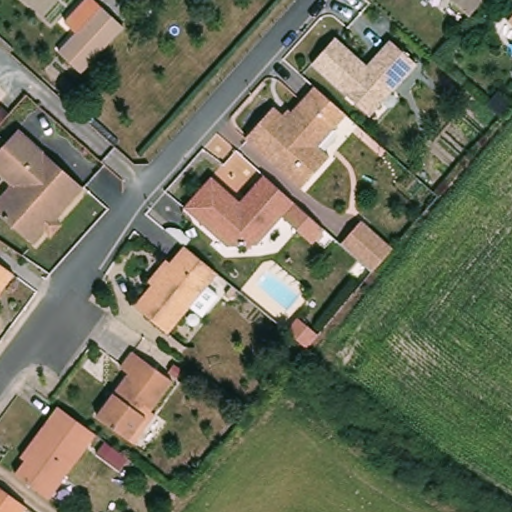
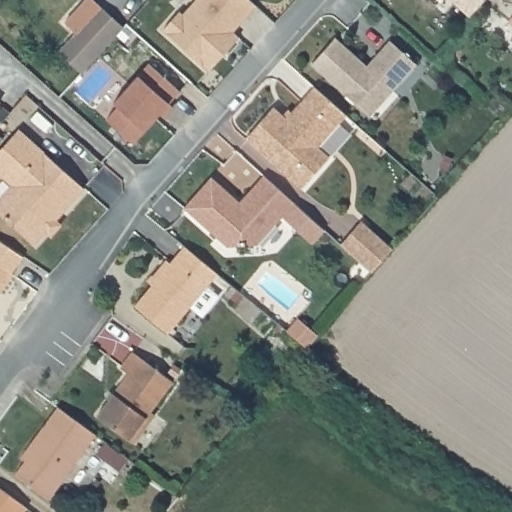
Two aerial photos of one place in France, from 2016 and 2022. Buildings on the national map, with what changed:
new [(165,29),(180,11),(184,14),(196,0),(251,0),(256,5),(233,32),(238,36),(209,70),(165,29)]
unchanged [(465,21),(441,0),(483,0),(465,21)]
unchanged [(124,27),(81,73),(59,52),(101,6),(124,27)]
unchanged [(512,16),(512,26),(507,22),(512,16)]
unchanged [(362,109),(312,65),(335,39),(367,67),(376,57),(390,40),(416,64),(392,90),(370,116),(362,109)]
new [(175,105),(165,117),(161,112),(144,130),(145,131),(134,142),(108,118),(119,105),(115,101),(138,75),(150,62),(180,91),(172,101),(175,105)]
unchanged [(346,115),(317,146),(329,157),(301,188),(245,138),(273,107),(282,115),(287,109),(291,112),(314,86),(346,115)]
unchanged [(52,235),(47,230),(35,244),(22,232),(0,213),(0,199),(13,185),(0,173),(0,150),(19,130),(72,177),(84,188),(56,220),(61,225),(52,235)]
unchanged [(4,139),(0,143),(0,136),(4,139)]
unchanged [(263,175),(293,202),(257,243),(227,245),(184,207),(212,176),(235,197),(235,207),(245,207),(244,197),(263,175)]
new [(361,221),(392,249),(372,272),(341,244),(361,221)]
unchanged [(218,279),(167,336),(135,308),(186,250),(218,279)]
unchanged [(12,274),(0,291),(0,265),(12,274)]
unchanged [(297,317),(317,336),(316,338),(307,348),(286,329),(297,317)]
unchanged [(172,381),(129,440),(97,416),(129,373),(121,367),(132,352),(172,381)]
unchanged [(29,446),(58,406),(96,434),(49,499),(15,474),(23,464),(19,460),(29,446)]
unchanged [(23,512),(0,512),(0,488),(27,507),(23,512)]

